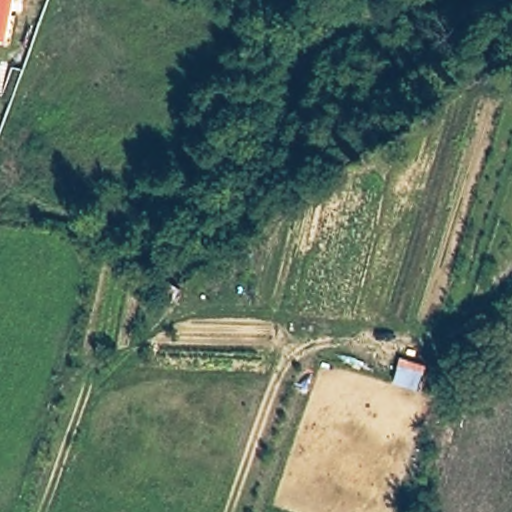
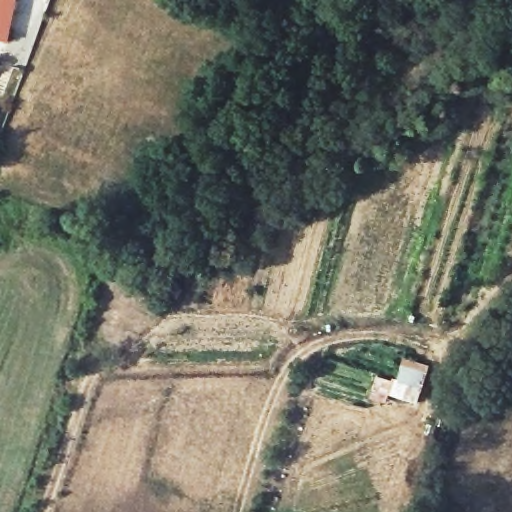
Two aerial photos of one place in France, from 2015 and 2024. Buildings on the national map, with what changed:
unchanged [(0,36),(0,0),(14,0),(6,37),(0,36)]

